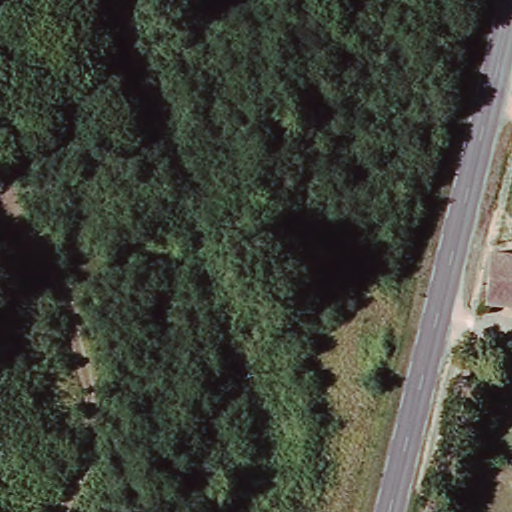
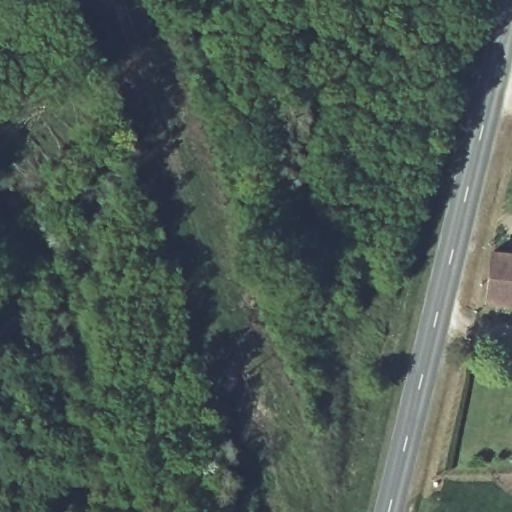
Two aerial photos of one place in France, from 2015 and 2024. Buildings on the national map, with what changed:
unchanged [(512,300),(485,297),(490,248),(512,250),(512,300)]

